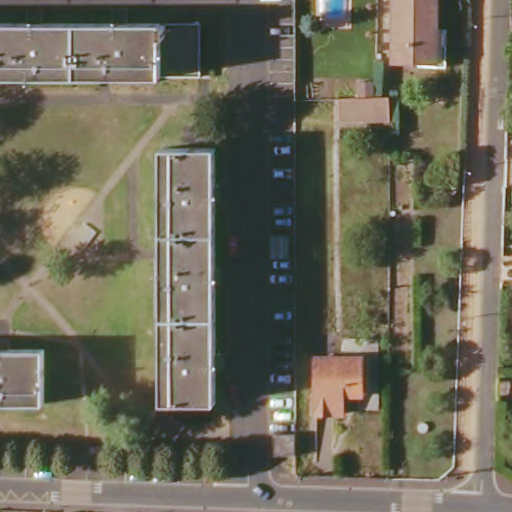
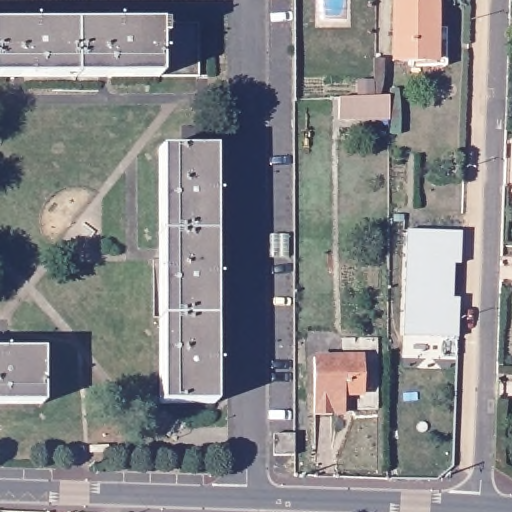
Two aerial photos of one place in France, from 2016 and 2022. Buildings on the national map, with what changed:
unchanged [(410,60),(410,54),(387,54),(388,0),(428,0),(427,26),(439,26),(437,61),(410,60)]
unchanged [(177,21),(177,76),(0,76),(0,21),(177,21)]
unchanged [(350,98),(367,98),(372,98),(385,97),(385,119),(367,119),(350,119),(334,119),(334,99),(350,98)]
unchanged [(155,144),(207,144),(206,398),(155,397),(155,144)]
new [(409,233),(462,233),(461,267),(446,267),(446,303),(461,303),(460,334),(407,334),(409,233)]
unchanged [(37,349),(37,403),(0,403),(0,350),(37,349)]
unchanged [(311,360),(357,360),(357,396),(340,396),(339,414),(310,414),(311,360)]
unchanged [(267,439),(294,439),(294,460),(267,461),(267,439)]

